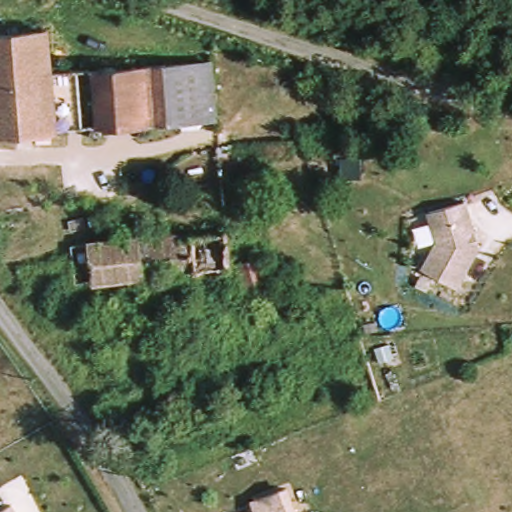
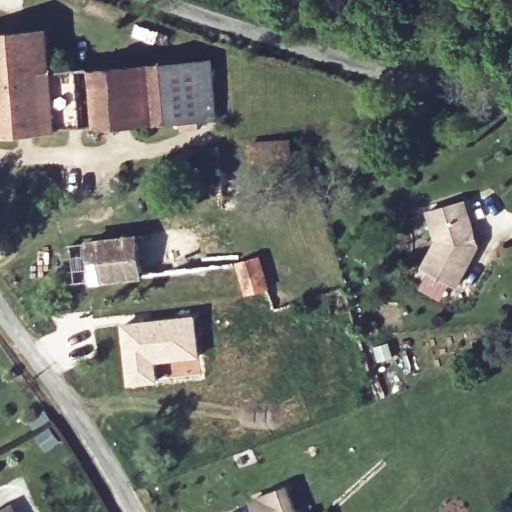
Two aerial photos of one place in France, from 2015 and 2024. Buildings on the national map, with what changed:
unchanged [(60,73),(218,63),(220,122),(1,137),(0,127),(0,36),(55,32),(60,73)]
unchanged [(288,147),(290,162),(254,164),(254,146),(288,147)]
unchanged [(456,287),(424,268),(440,241),(431,210),(468,200),(476,232),(473,236),(475,242),(480,245),(456,287)]
unchanged [(98,277),(95,242),(165,235),(171,241),(231,235),(237,270),(98,277)]
unchanged [(245,271),(245,263),(263,261),(270,292),(249,293),(245,271)]
new [(196,314),(202,375),(171,378),(170,362),(158,364),(160,383),(126,388),(120,323),(196,314)]
unchanged [(250,504),(284,491),(292,512),(253,512),(250,504)]
unchanged [(15,502),(20,512),(0,512),(0,511),(15,502)]

